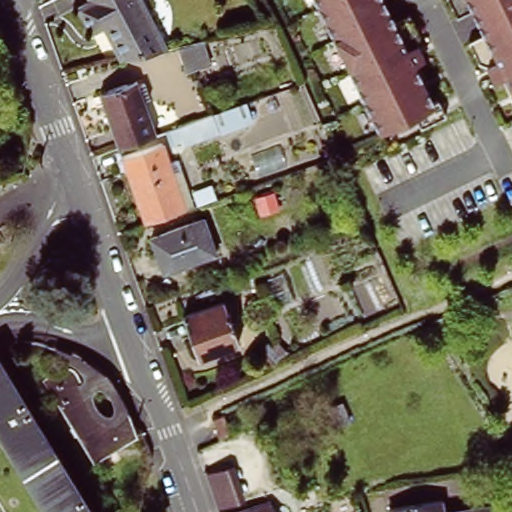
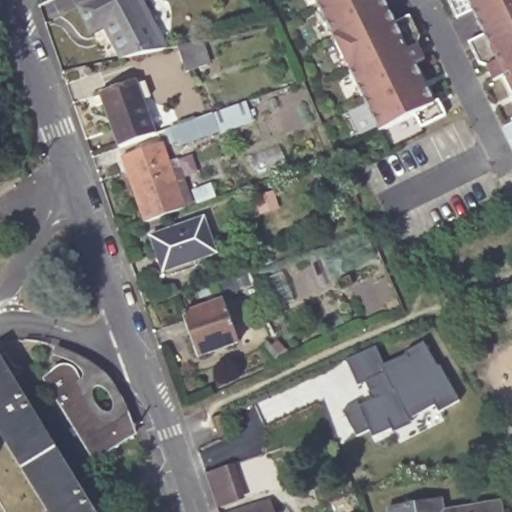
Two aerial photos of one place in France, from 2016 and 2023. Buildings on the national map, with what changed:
unchanged [(108,27),(95,33),(82,9),(94,3),(93,0),(143,0),(170,51),(125,61),(108,27)]
unchanged [(396,30),(410,23),(419,41),(417,48),(424,64),(416,68),(434,106),(439,103),(446,119),(421,130),(415,118),(381,133),(314,0),(386,0),(382,2),(396,30)]
unchanged [(494,76),(488,63),(479,60),(470,41),(485,34),(471,6),(457,14),(450,0),(512,0),(512,88),(504,72),(494,76)]
unchanged [(187,69),(179,44),(203,39),(209,60),(187,69)]
unchanged [(120,143),(101,90),(137,76),(156,131),(120,143)]
unchanged [(247,101),(252,120),(183,145),(181,141),(175,142),(170,130),(247,101)]
unchanged [(142,213),(125,165),(165,151),(181,200),(142,213)]
unchanged [(211,250),(160,267),(147,232),(199,215),(211,250)]
unchanged [(246,348),(207,364),(179,301),(219,284),(246,348)]
new [(440,412),(437,405),(408,421),(410,425),(393,432),(392,429),(372,436),(370,430),(355,436),(343,410),(359,402),(361,406),(371,401),(365,382),(357,384),(347,359),(376,347),(383,365),(407,355),(406,353),(424,344),(458,401),(440,412)]
unchanged [(94,456),(69,416),(46,378),(46,374),(55,368),(66,366),(71,368),(76,371),(79,376),(80,377),(90,399),(95,410),(104,416),(105,416),(115,415),(122,411),(121,409),(126,407),(135,432),(94,456)]
unchanged [(0,440),(0,369),(51,452),(20,471),(0,440)]
demolished [(220,441),(210,418),(261,394),(272,418),(220,441)]
unchanged [(51,452),(87,512),(44,512),(20,471),(51,452)]
unchanged [(233,463),(244,498),(218,507),(207,473),(233,463)]
unchanged [(383,506),(435,496),(437,507),(477,502),(492,499),(494,512),(384,512),(383,506)]
unchanged [(323,508),(328,507),(339,504),(350,502),(352,512),(324,512),(323,508)]
unchanged [(271,505),(273,512),(247,512),(271,505)]

